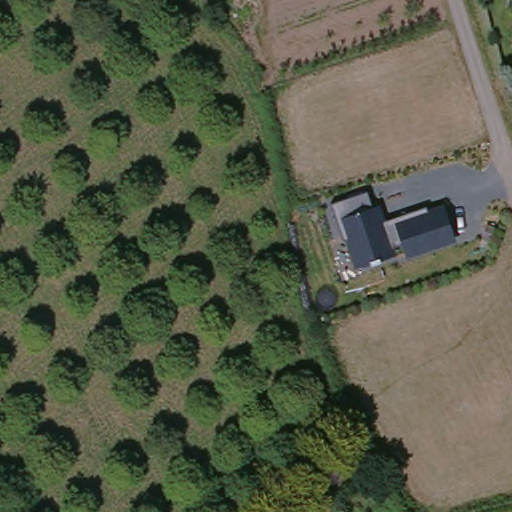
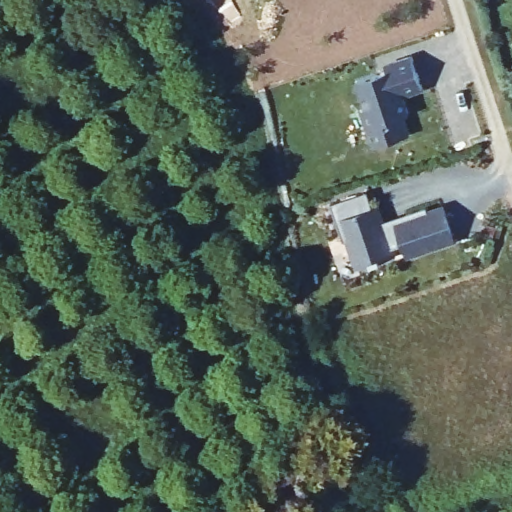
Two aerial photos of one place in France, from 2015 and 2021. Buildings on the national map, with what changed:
new [(423,89),(401,97),(411,134),(372,147),(359,111),(364,106),(354,78),(387,67),(384,61),(410,52),(423,89)]
unchanged [(406,257),(403,247),(391,251),(392,258),(358,268),(349,242),(341,245),(328,201),(368,189),(373,206),(381,204),(385,218),(426,205),(427,209),(441,206),(453,242),(406,257)]

